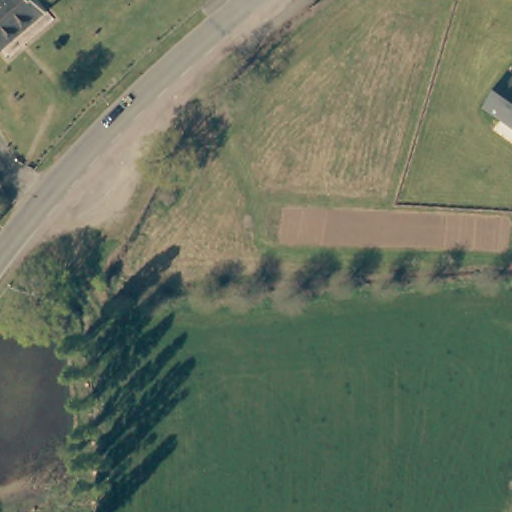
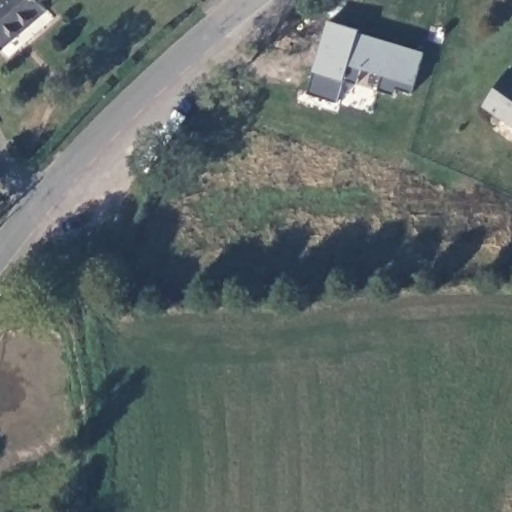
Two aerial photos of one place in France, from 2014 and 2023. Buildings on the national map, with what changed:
unchanged [(0,46),(0,0),(38,0),(45,7),(0,46)]
new [(412,94),(396,88),(394,95),(375,90),(381,75),(361,70),(355,85),(342,81),(335,103),(308,94),(329,24),(359,31),(424,52),(412,94)]
unchanged [(486,100),(512,70),(512,124),(486,100)]

